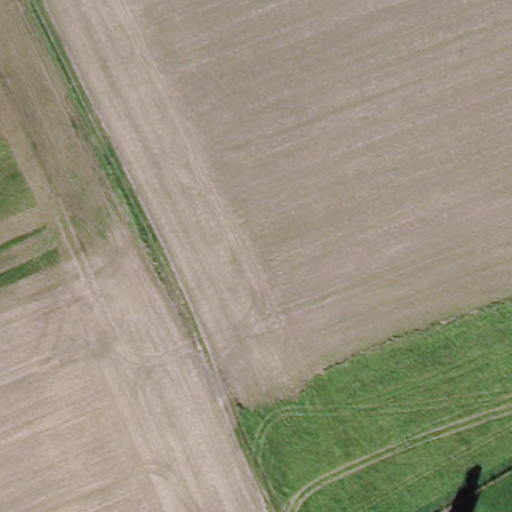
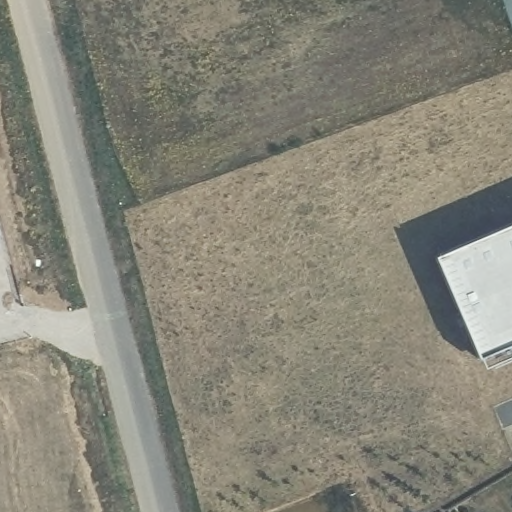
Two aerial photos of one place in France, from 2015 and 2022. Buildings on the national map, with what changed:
new [(482,369),(433,255),(512,222),(512,357),(482,369)]

